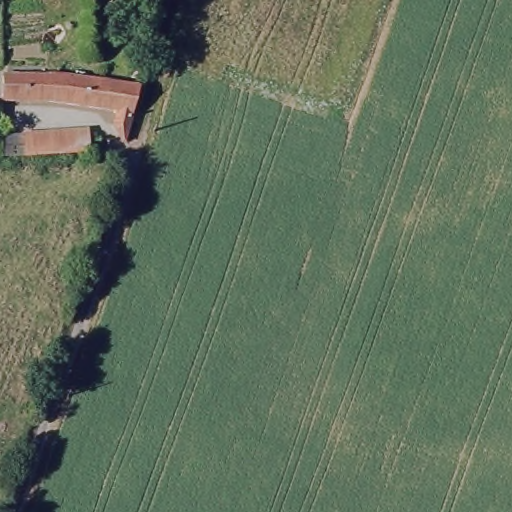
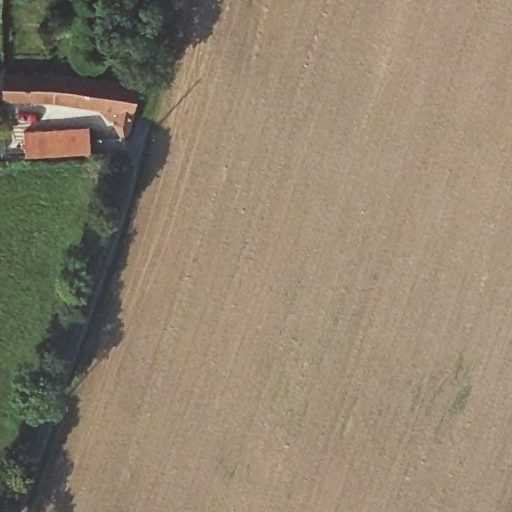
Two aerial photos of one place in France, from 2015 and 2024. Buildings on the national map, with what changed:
unchanged [(2,67),(140,84),(132,117),(120,116),(120,110),(0,95),(0,84),(2,67)]
unchanged [(75,126),(77,139),(18,143),(16,129),(75,126)]

